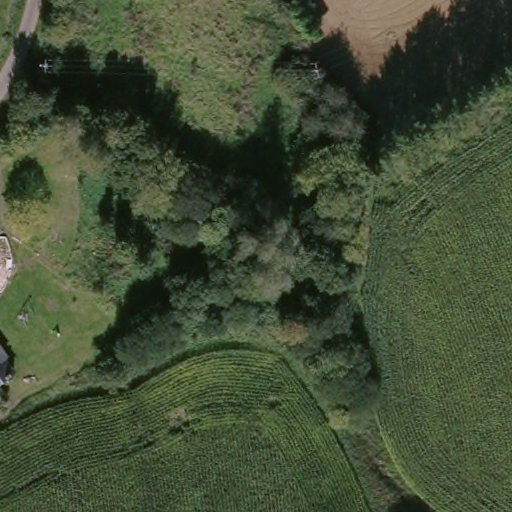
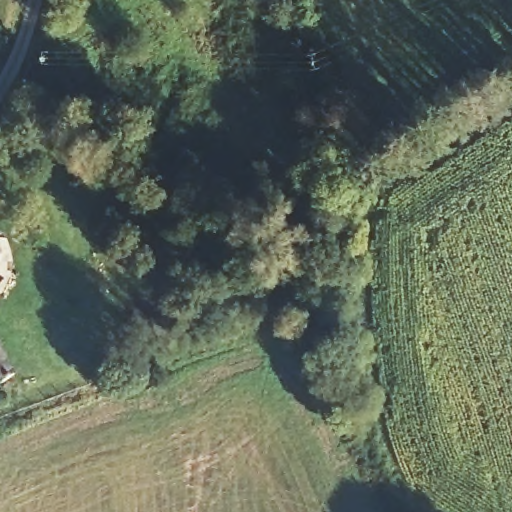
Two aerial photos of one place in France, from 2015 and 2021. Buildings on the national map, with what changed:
unchanged [(0,375),(0,358),(8,370),(0,375)]
unchanged [(0,399),(0,386),(6,395),(0,399)]

